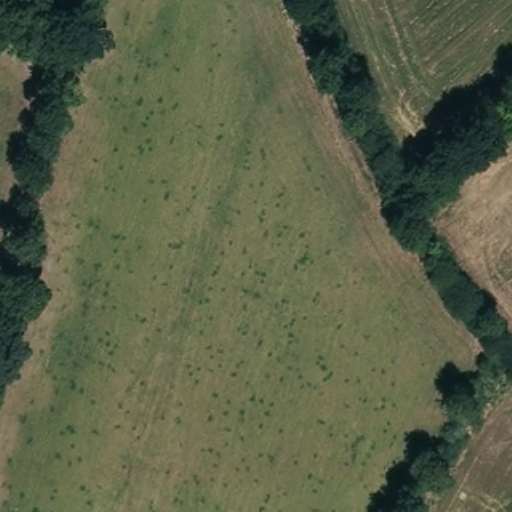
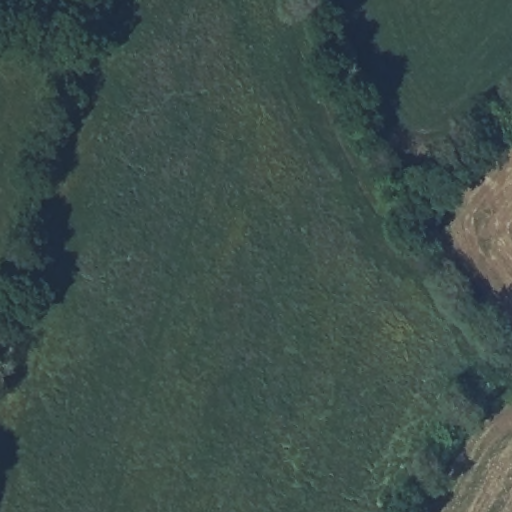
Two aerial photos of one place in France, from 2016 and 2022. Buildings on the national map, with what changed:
[]

